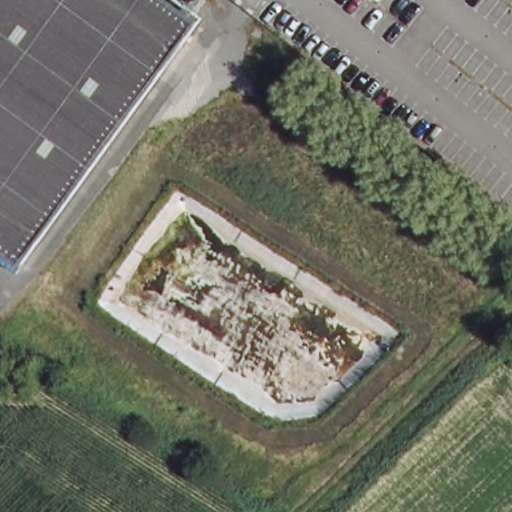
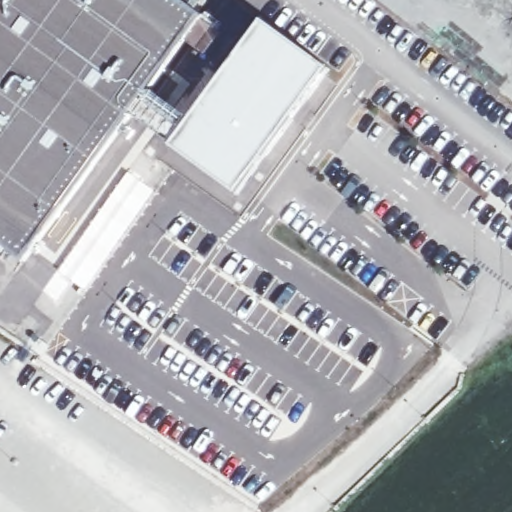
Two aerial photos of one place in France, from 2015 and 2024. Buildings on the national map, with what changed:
unchanged [(204,15),(24,261),(0,244),(0,0),(183,0),(204,15)]
new [(179,121),(172,116),(177,109),(187,117),(201,101),(261,19),(329,68),(237,195),(165,143),(179,121)]
new [(126,170),(156,191),(84,290),(56,270),(126,170)]

